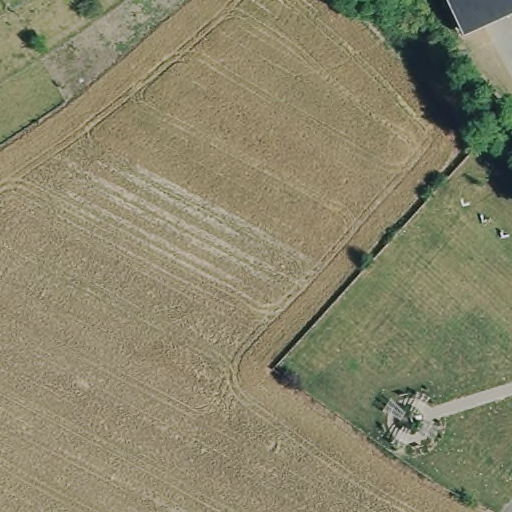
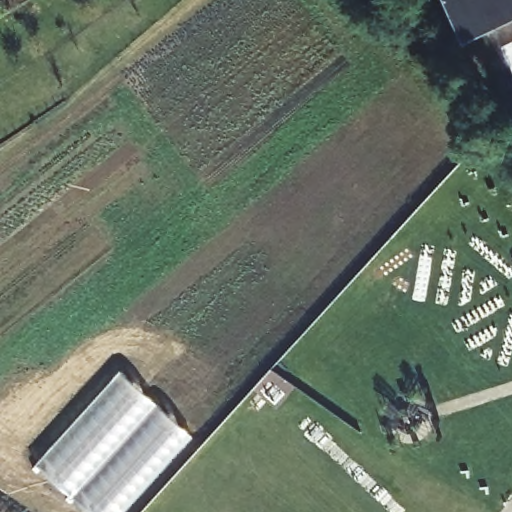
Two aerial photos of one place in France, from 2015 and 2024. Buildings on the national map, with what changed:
unchanged [(449,0),(512,0),(512,12),(465,35),(449,0)]
new [(192,434),(123,512),(89,512),(35,463),(121,370),(192,434)]

